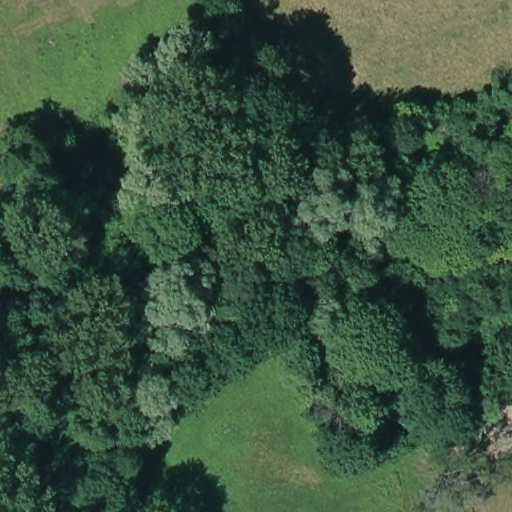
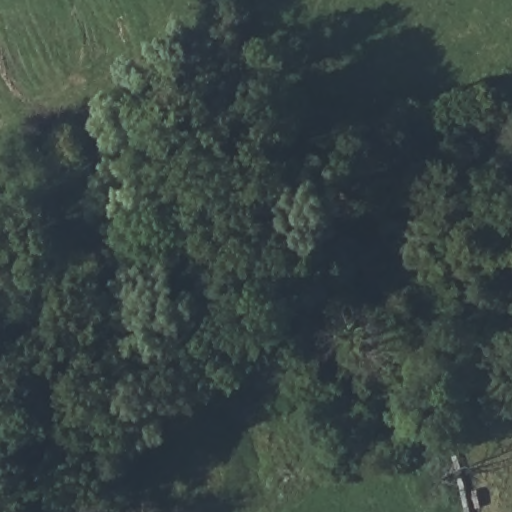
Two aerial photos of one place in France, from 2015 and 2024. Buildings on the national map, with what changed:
[]

